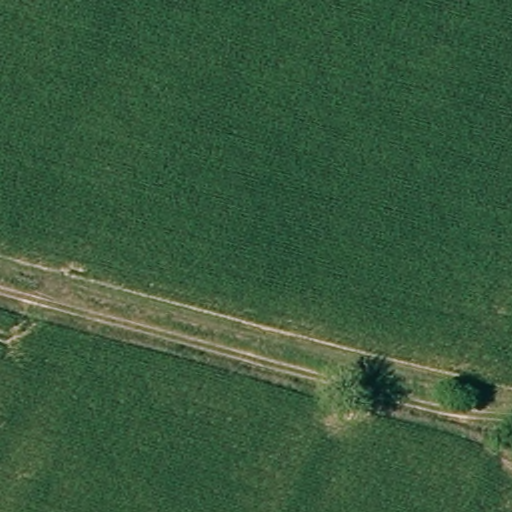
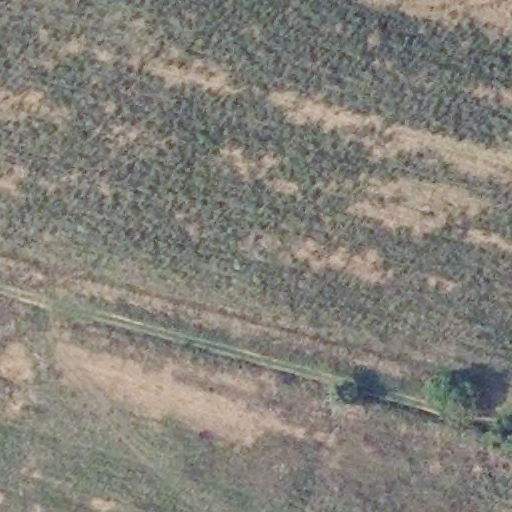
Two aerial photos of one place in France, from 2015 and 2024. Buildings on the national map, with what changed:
[]

